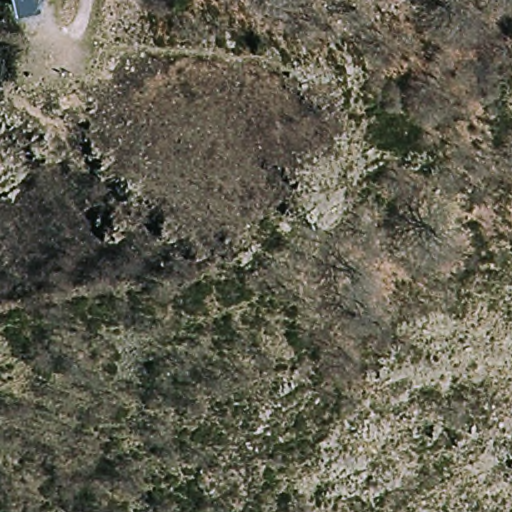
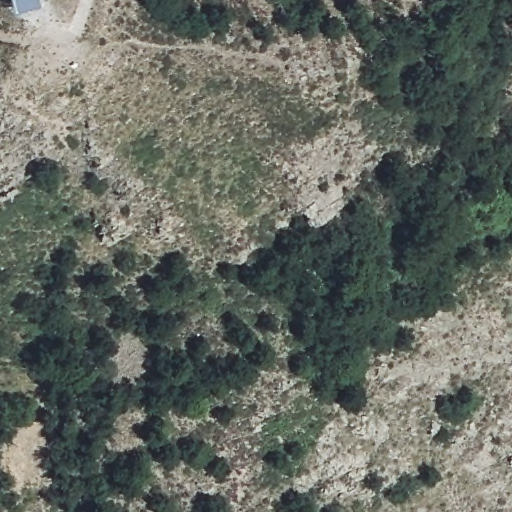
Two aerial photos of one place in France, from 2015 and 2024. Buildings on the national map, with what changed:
unchanged [(18,2),(18,0),(26,0),(18,2)]

